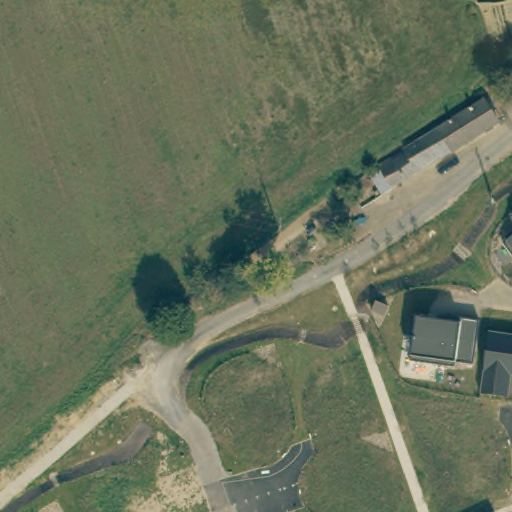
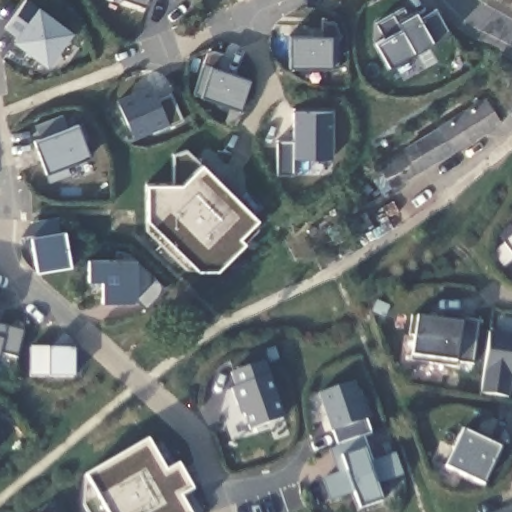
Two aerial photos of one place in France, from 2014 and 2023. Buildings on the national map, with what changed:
new [(46,68),(10,42),(14,36),(3,30),(24,0),(26,0),(73,33),(46,68)]
new [(384,38),(376,23),(403,8),(408,15),(415,11),(420,20),(436,9),(450,35),(389,67),(375,44),(384,38)]
new [(328,68),(288,67),(289,37),(331,37),(339,37),(339,67),(328,68)]
new [(240,107),(201,94),(211,66),(250,78),(240,107)]
new [(133,140),(115,99),(151,84),(157,99),(170,94),(181,121),(133,140)]
unchanged [(379,196),(366,177),(484,101),(498,125),(379,196)]
new [(295,159),(293,175),(278,175),(278,139),(292,140),(294,109),(334,109),(334,159),(295,159)]
new [(68,165),(71,175),(48,182),(46,173),(32,140),(79,124),(91,156),(68,165)]
new [(240,239),(244,243),(214,269),(195,268),(145,218),(145,183),(175,183),(174,154),(190,149),(203,163),(258,220),(240,239)]
new [(35,270),(30,237),(65,231),(69,267),(35,270)]
unchanged [(512,238),(512,253),(504,244),(512,238)]
new [(154,302),(133,302),(102,303),(101,282),(89,281),(89,258),(137,258),(165,288),(154,302)]
unchanged [(412,357),(419,315),(462,320),(479,322),(473,363),(412,357)]
new [(24,331),(16,357),(2,354),(0,360),(0,325),(24,331)]
new [(74,354),(73,378),(31,377),(31,348),(48,348),(64,331),(81,348),(74,354)]
unchanged [(482,394),(491,332),(512,334),(512,383),(509,398),(482,394)]
unchanged [(284,419),(250,431),(243,414),(239,415),(230,389),(235,387),(230,373),(264,362),(284,419)]
new [(370,433),(363,436),(370,460),(394,452),(402,475),(376,486),(382,502),(360,509),(354,493),(329,501),(323,479),(338,474),(330,448),(337,446),(318,393),(353,381),(370,433)]
new [(148,441),(164,470),(178,463),(192,490),(180,496),(189,512),(105,512),(82,474),(148,441)]

